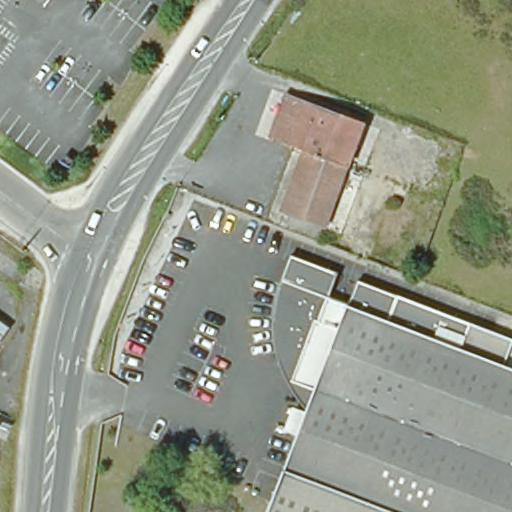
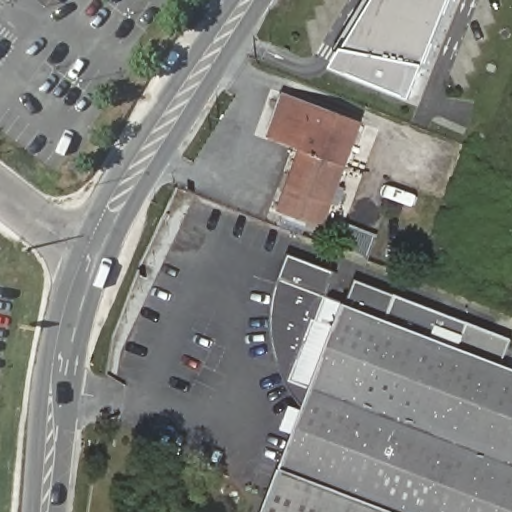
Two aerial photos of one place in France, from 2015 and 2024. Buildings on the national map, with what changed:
unchanged [(27,0),(40,0),(35,6),(27,0)]
new [(335,70),(379,0),(455,0),(415,101),(335,70)]
unchanged [(363,126),(322,233),(280,217),(301,156),(270,145),(288,100),(363,126)]
new [(291,255),(338,274),(330,297),(282,279),(291,255)]
unchanged [(302,410),(301,410),(300,408),(298,407),(297,406),(296,405),(295,403),(294,402),(293,401),(292,400),(291,398),(290,397),(289,395),(288,395),(287,393),(286,391),(285,390),(284,389),(283,387),(282,386),(281,385),(281,383),(280,381),(279,380),(278,379),(277,377),(277,376),(276,375),(275,373),(275,371),(274,370),(273,368),(273,366),(272,365),(272,363),(271,362),(271,360),(270,359),(270,357),(270,355),(269,354),(268,352),(268,351),(268,349),(267,347),(267,346),(267,345),(266,342),(266,341),(266,340),(266,337),(266,336),(265,335),(265,332),(265,331),(265,330),(265,328),(265,326),(265,325),(265,323),(265,321),(265,320),(265,318),(265,316),(265,315),(266,313),(266,311),(266,310),(266,308),(266,306),(267,305),(267,303),(267,301),(267,300),(268,298),(268,296),(269,295),(269,293),(270,291),(270,290),(270,288),(271,287),(271,285),(272,284),(272,282),(273,280),(274,279),(275,277),(275,276),(282,279),(330,297),(346,303),(344,308),(346,309),(357,281),(512,340),(501,367),(512,371),(512,512),(265,512),(280,470),(303,411),(302,410)]
demolished [(14,335),(0,354),(0,325),(14,335)]

